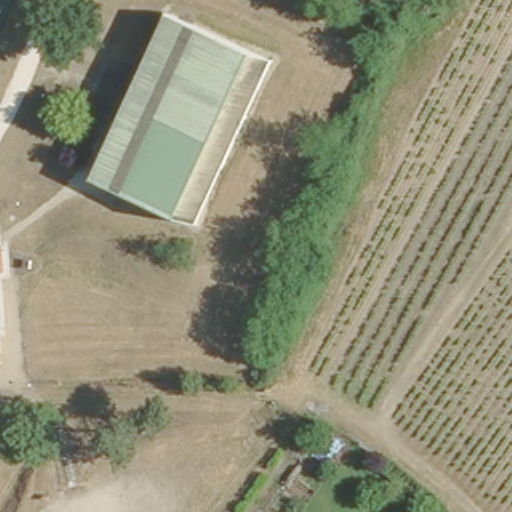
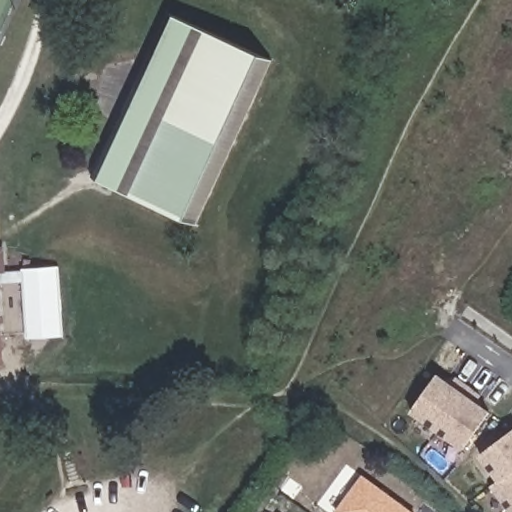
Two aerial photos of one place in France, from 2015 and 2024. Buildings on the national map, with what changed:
unchanged [(100,163),(170,11),(268,58),(199,209),(100,163)]
unchanged [(4,246),(6,272),(0,272),(0,246),(4,246)]
new [(64,334),(27,337),(21,271),(60,268),(64,334)]
new [(476,403),(489,412),(462,451),(409,413),(437,373),(451,384),(456,376),(481,396),(476,403)]
unchanged [(110,374),(122,377),(116,393),(103,389),(110,374)]
new [(497,482),(478,456),(512,430),(512,512),(508,512),(490,487),(497,482)]
new [(414,512),(335,512),(362,475),(414,512)]

